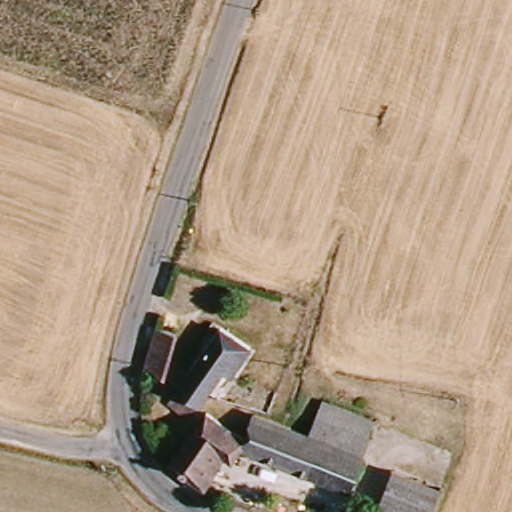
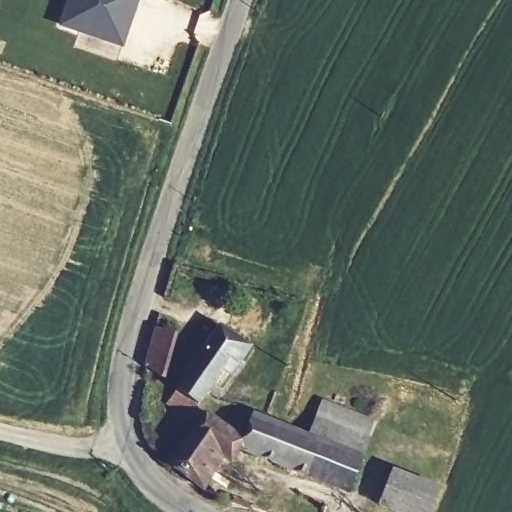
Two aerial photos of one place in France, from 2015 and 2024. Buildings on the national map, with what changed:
new [(124,48),(59,27),(68,0),(140,0),(124,48)]
unchanged [(169,405),(180,390),(216,339),(206,332),(211,325),(249,350),(231,377),(220,369),(204,394),(197,404),(188,419),(169,405)]
unchanged [(169,334),(157,371),(137,361),(148,327),(169,334)]
unchanged [(321,399),(376,422),(367,442),(314,418),(321,399)]
unchanged [(323,485),(237,450),(231,464),(223,459),(201,490),(171,467),(210,414),(242,436),(250,417),(306,440),(314,418),(367,442),(359,461),(345,494),(323,485)]
unchanged [(388,512),(378,508),(392,475),(437,496),(430,512),(388,512)]

